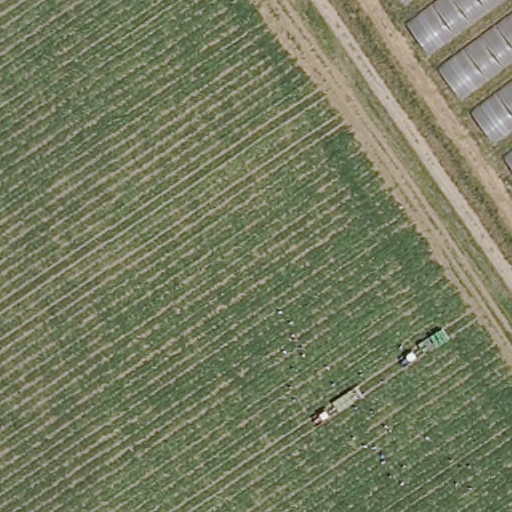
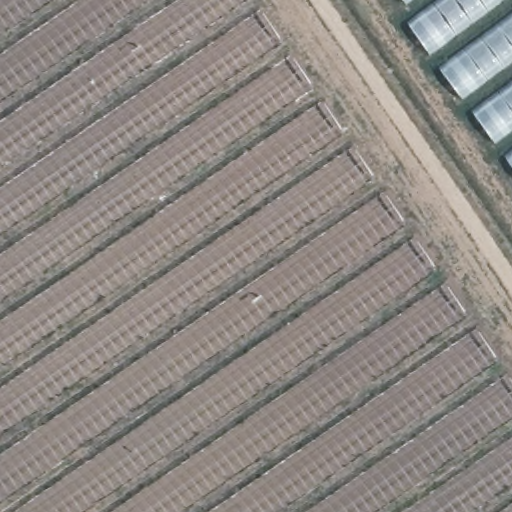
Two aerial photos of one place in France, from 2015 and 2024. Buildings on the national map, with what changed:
new [(0,0),(253,0),(512,384),(512,512),(0,512),(0,0)]
unchanged [(392,0),(512,0),(512,176),(392,0)]

